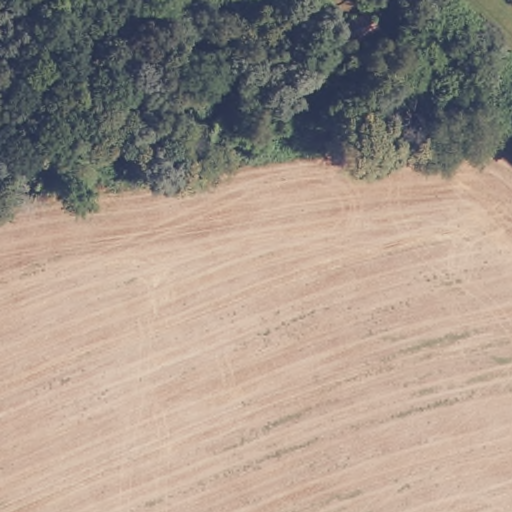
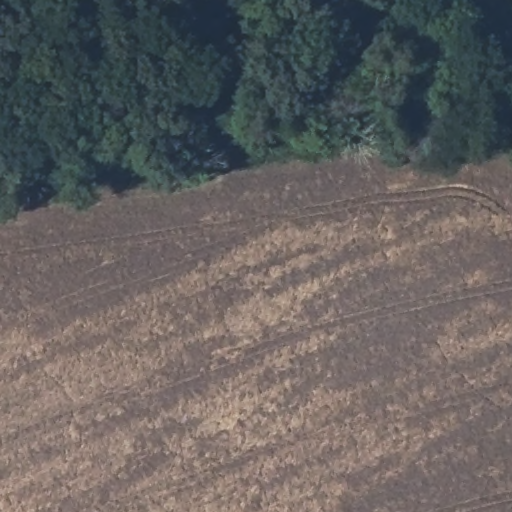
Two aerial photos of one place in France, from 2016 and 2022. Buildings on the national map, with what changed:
unchanged [(369,10),(381,30),(345,49),(334,28),(369,10)]

